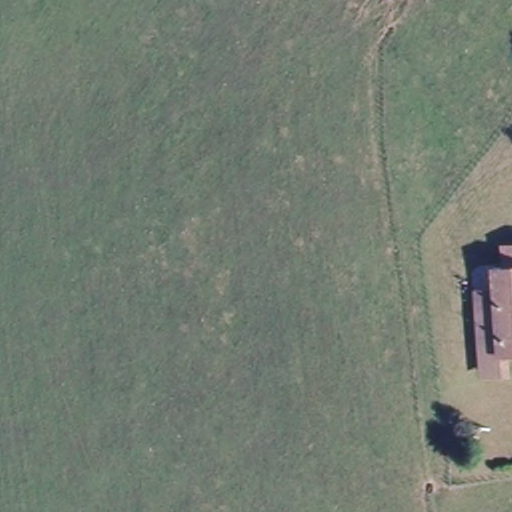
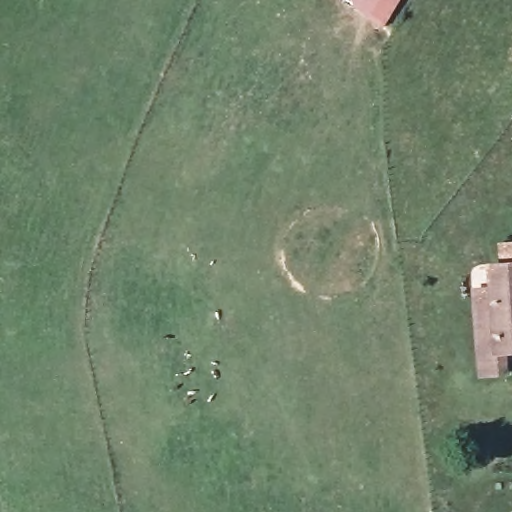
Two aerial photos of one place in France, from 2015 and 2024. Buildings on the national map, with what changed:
new [(344,0),(400,0),(384,25),(344,0)]
demolished [(351,9),(357,0),(386,0),(374,20),(351,9)]
unchanged [(501,359),(503,381),(477,383),(475,356),(472,323),(471,302),(488,300),(487,278),(498,277),(497,256),(512,255),(512,358),(501,359)]

